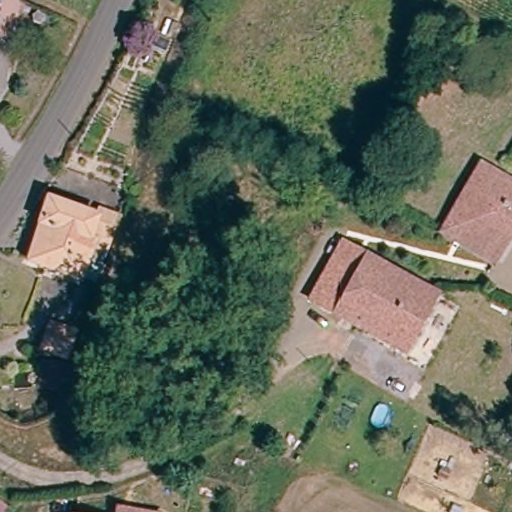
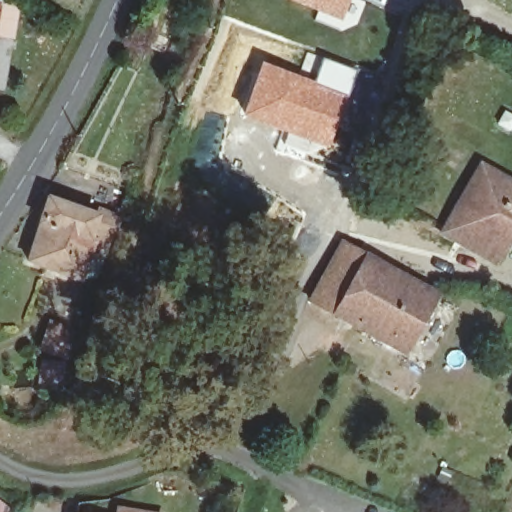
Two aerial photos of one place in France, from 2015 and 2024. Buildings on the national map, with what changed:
new [(340,18),(296,0),(348,0),(340,18)]
new [(307,78),(313,81),(322,58),(358,71),(350,96),(331,151),(242,118),(260,61),(307,78)]
unchanged [(471,163),(512,184),(512,223),(489,263),(432,230),(471,163)]
unchanged [(24,261),(45,199),(91,211),(94,204),(118,211),(114,224),(95,281),(24,261)]
unchanged [(338,243),(362,255),(329,319),(302,304),(338,243)]
unchanged [(362,255),(435,295),(400,356),(329,319),(362,255)]
unchanged [(44,362),(51,337),(76,343),(68,369),(68,371),(44,362)]
unchanged [(0,499),(5,503),(0,510),(0,499)]
unchanged [(150,512),(119,512),(120,508),(150,512)]

